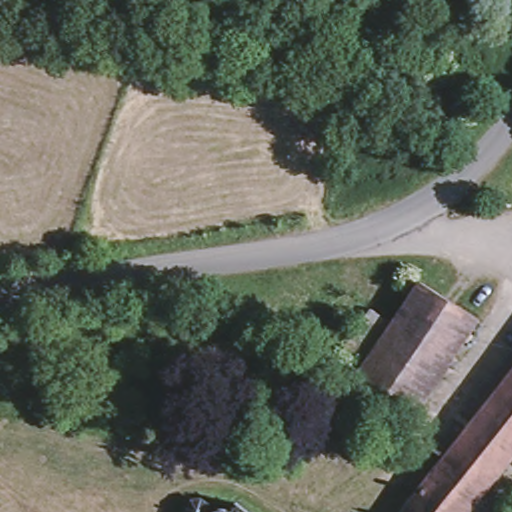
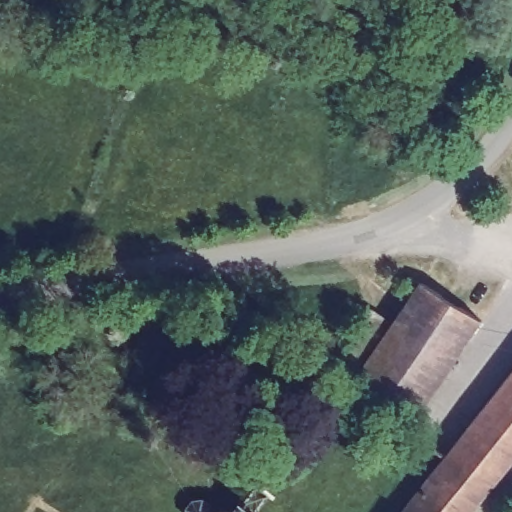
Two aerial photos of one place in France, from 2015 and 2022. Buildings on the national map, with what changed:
unchanged [(360,376),(399,318),(416,295),(405,287),(415,273),(425,281),(426,279),(486,318),(410,430),(351,389),(360,376)]
unchanged [(340,362),(378,305),(399,318),(360,376),(340,362)]
unchanged [(486,414),(512,381),(512,470),(480,512),(410,512),(452,459),(486,414)]
unchanged [(211,498),(220,502),(224,510),(244,511),(252,505),(259,512),(199,512),(202,503),(211,498)]

